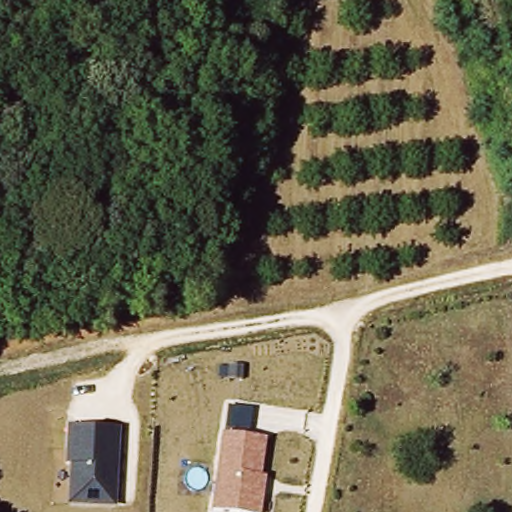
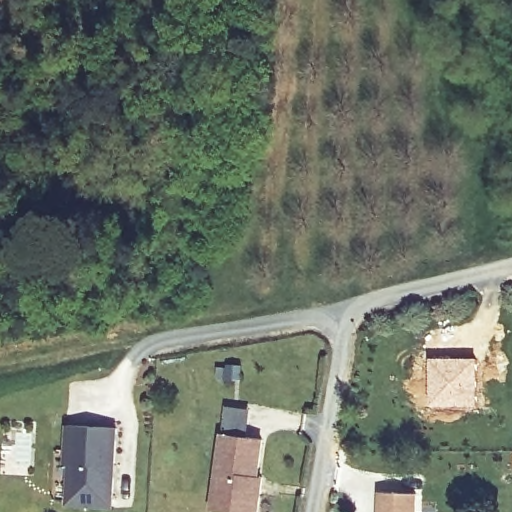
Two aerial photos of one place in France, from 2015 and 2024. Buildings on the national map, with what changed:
new [(480,407),(429,407),(429,360),(479,357),(480,407)]
unchanged [(115,508),(67,506),(69,467),(65,467),(68,427),(119,429),(115,508)]
unchanged [(264,435),(258,477),(264,480),(261,512),(234,512),(211,509),(220,428),(264,435)]
unchanged [(379,512),(379,491),(420,491),(419,512),(379,512)]

